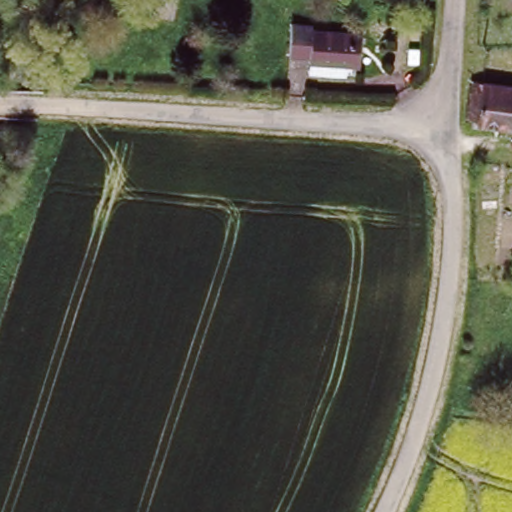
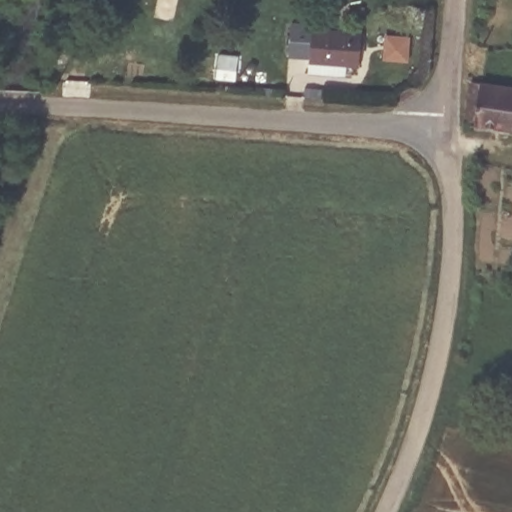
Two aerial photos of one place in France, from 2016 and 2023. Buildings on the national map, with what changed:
unchanged [(293,17),(315,21),(314,25),(362,31),(355,68),(311,61),(312,54),(290,53),(293,17)]
unchanged [(512,127),(471,122),(472,90),(512,94),(512,127)]

